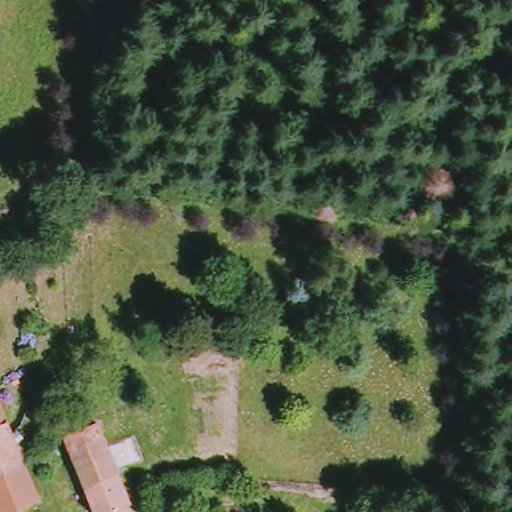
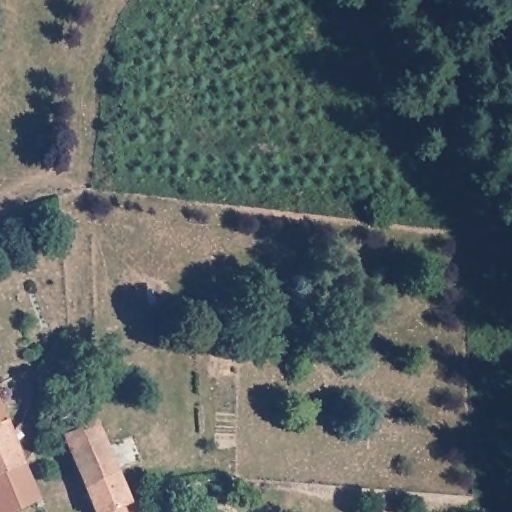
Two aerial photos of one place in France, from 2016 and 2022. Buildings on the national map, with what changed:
unchanged [(25,464),(0,474),(0,394),(8,421),(25,464)]
unchanged [(65,437),(97,423),(130,504),(124,506),(128,512),(98,512),(65,437)]
unchanged [(39,499),(8,512),(0,512),(0,474),(25,464),(39,499)]

